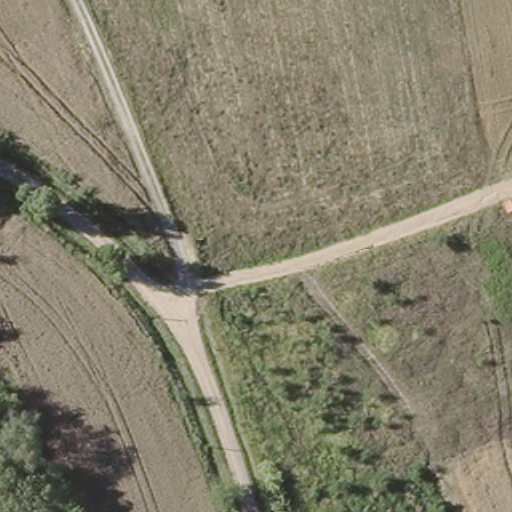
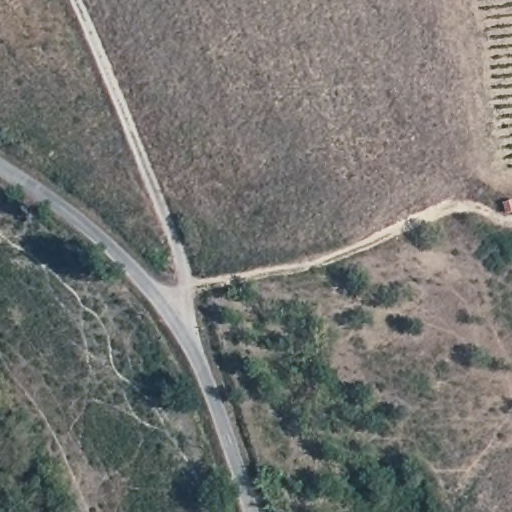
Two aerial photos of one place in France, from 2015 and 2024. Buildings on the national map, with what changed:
unchanged [(512,207),(512,216),(509,217),(507,208),(512,207)]

